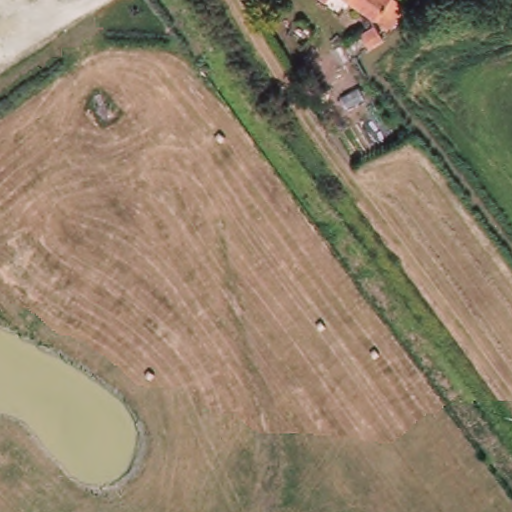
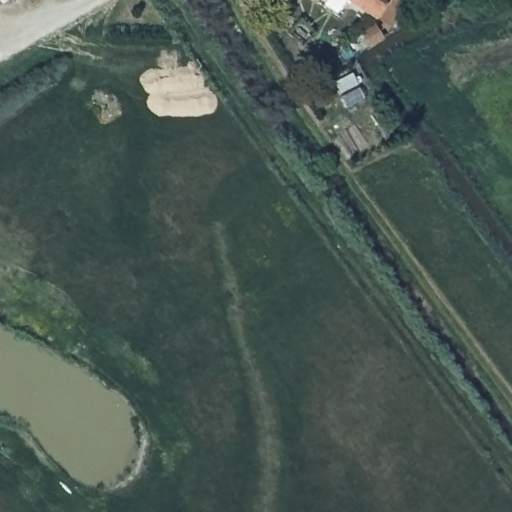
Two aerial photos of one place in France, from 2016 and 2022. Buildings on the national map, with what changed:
unchanged [(378,21),(376,22),(351,0),(395,0),(407,11),(389,31),(378,21)]
unchanged [(371,51),(370,49),(362,37),(375,29),(382,41),(383,42),(371,51)]

